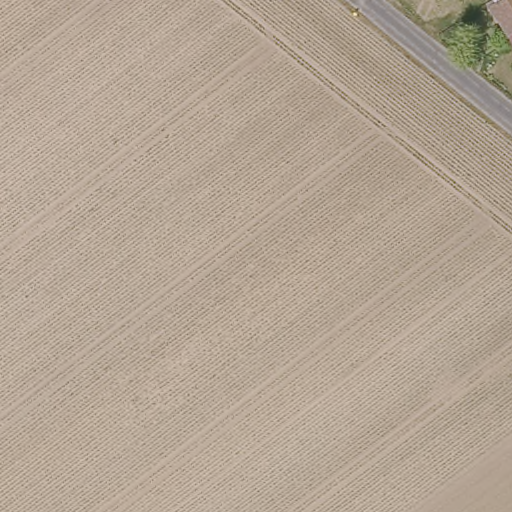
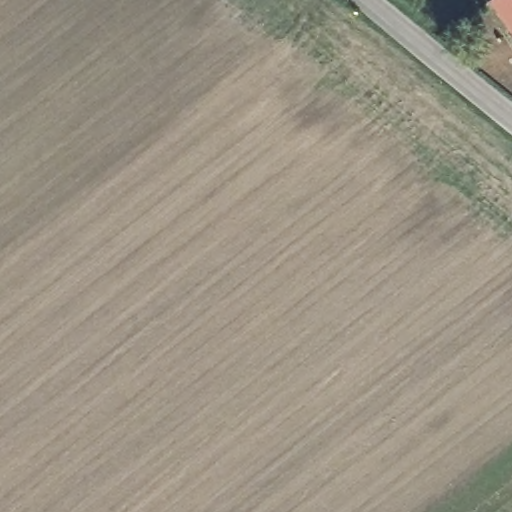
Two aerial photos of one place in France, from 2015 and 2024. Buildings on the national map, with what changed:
unchanged [(507,33),(487,0),(512,0),(512,30),(507,33)]
unchanged [(507,33),(512,30),(512,40),(507,33)]

